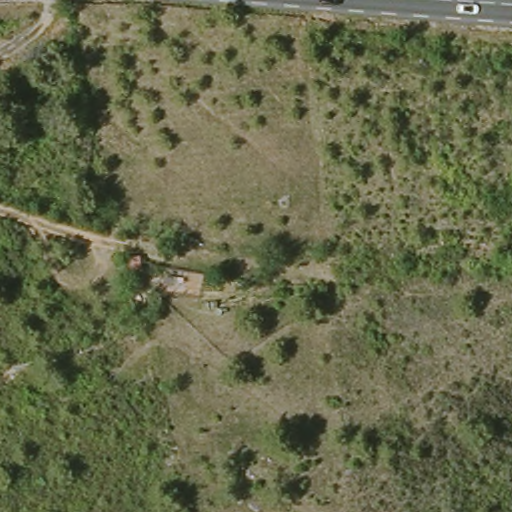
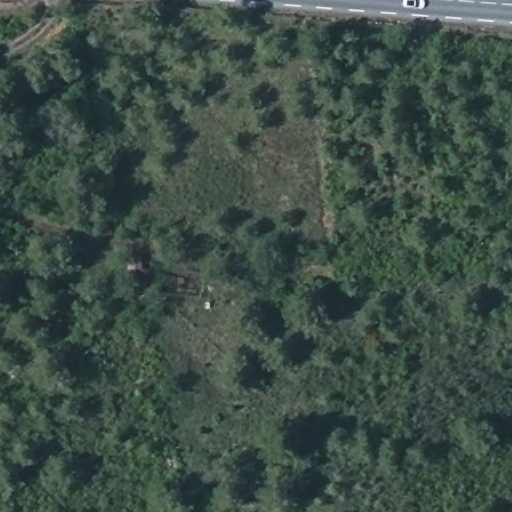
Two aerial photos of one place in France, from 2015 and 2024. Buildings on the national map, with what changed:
unchanged [(457,251),(441,256),(439,240),(454,236),(457,251)]
unchanged [(121,263),(135,257),(141,268),(128,275),(121,263)]

